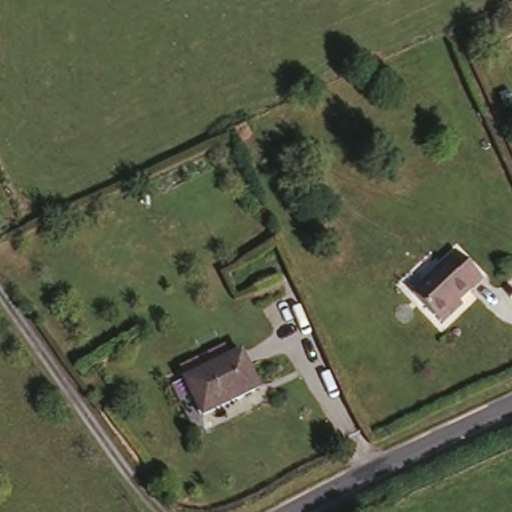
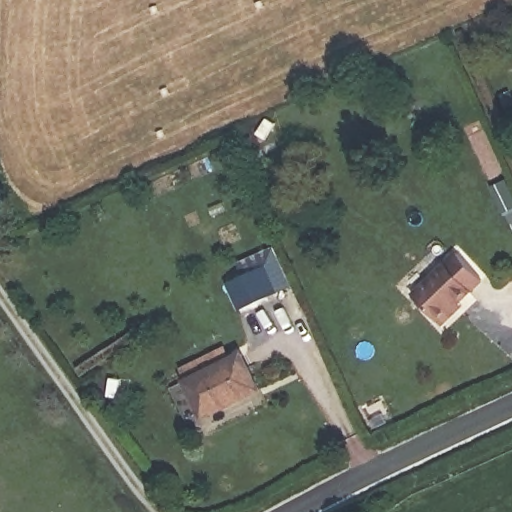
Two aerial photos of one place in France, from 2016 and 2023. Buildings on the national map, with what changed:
unchanged [(445,331),(439,325),(410,297),(455,251),(484,279),(458,305),(464,313),(445,331)]
new [(226,282),(266,261),(278,290),(239,308),(226,282)]
unchanged [(259,392),(202,417),(184,378),(243,352),(259,392)]

